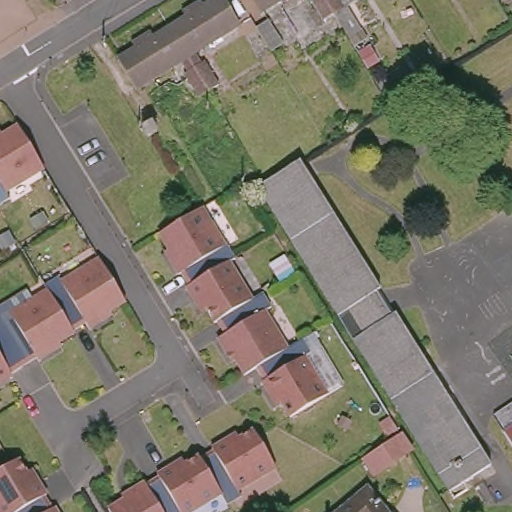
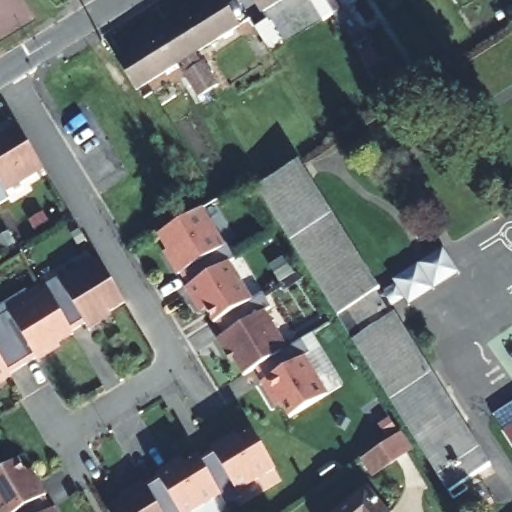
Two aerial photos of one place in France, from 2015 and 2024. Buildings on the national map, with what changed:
unchanged [(189,51),(195,61),(199,59),(212,80),(203,86),(166,25),(177,18),(174,13),(185,7),(193,2),(196,6),(207,0),(220,0),(234,23),(189,51)]
unchanged [(249,0),(272,0),(255,9),(249,0)]
unchanged [(319,15),(308,0),(322,0),(328,9),(319,15)]
unchanged [(328,9),(322,0),(336,0),(338,3),(328,9)]
unchanged [(124,44),(134,38),(143,32),(146,37),(166,25),(203,86),(192,93),(179,71),(182,68),(177,58),(138,82),(130,87),(112,58),(127,49),(124,44)]
unchanged [(155,128),(147,133),(142,125),(151,120),(155,128)]
unchanged [(45,168),(8,190),(12,196),(0,204),(0,137),(19,125),(45,168)]
unchanged [(381,293),(371,299),(386,323),(395,317),(492,468),(451,495),(354,341),(259,191),(266,186),(299,165),(381,293)]
unchanged [(202,203),(224,239),(226,238),(235,253),(229,256),(188,281),(181,268),(179,269),(169,254),(172,252),(160,230),(159,229),(202,203)]
unchanged [(41,271),(55,263),(57,267),(95,245),(101,254),(102,257),(114,275),(127,299),(132,305),(132,306),(109,320),(112,324),(97,333),(96,333),(92,328),(80,335),(62,306),(50,286),(44,276),(41,271)]
unchanged [(188,281),(229,256),(252,295),(242,301),(217,317),(214,318),(202,296),(197,299),(186,282),(188,281)]
unchanged [(7,298),(44,276),(50,286),(62,306),(80,335),(81,338),(56,353),(57,356),(42,366),(41,363),(30,370),(27,365),(9,335),(0,321),(0,301),(6,297),(7,298)]
unchanged [(242,301),(252,295),(262,289),(272,304),(266,307),(287,344),(260,361),(257,363),(253,365),(244,370),(230,347),(226,349),(217,334),(224,329),(217,317),(242,301)]
unchanged [(27,365),(30,370),(17,378),(19,380),(3,389),(0,384),(0,321),(9,335),(27,365)]
unchanged [(260,361),(287,344),(302,335),(310,349),(305,352),(327,390),(290,413),(276,389),(271,392),(262,377),(264,376),(257,363),(260,361)]
unchanged [(362,460),(390,440),(379,426),(391,418),(413,451),(374,478),(362,460)]
unchanged [(512,422),(512,448),(500,429),(512,422)]
unchanged [(212,452),(211,450),(226,440),(229,445),(252,431),(275,468),(235,494),(239,499),(227,506),(221,496),(200,460),(212,452)]
unchanged [(31,476),(36,473),(46,490),(45,491),(44,491),(52,504),(54,503),(59,512),(1,512),(0,510),(0,466),(18,455),(31,476)]
unchanged [(175,465),(177,470),(185,465),(198,457),(199,458),(200,460),(221,496),(211,501),(193,512),(179,512),(159,477),(158,477),(157,475),(175,465)]
unchanged [(107,510),(131,496),(129,492),(144,483),(146,485),(159,477),(179,512),(109,512),(107,510)]
unchanged [(367,487),(387,512),(336,512),(367,487)]

